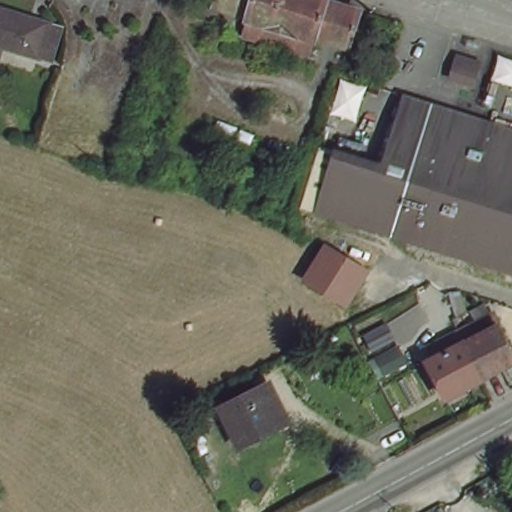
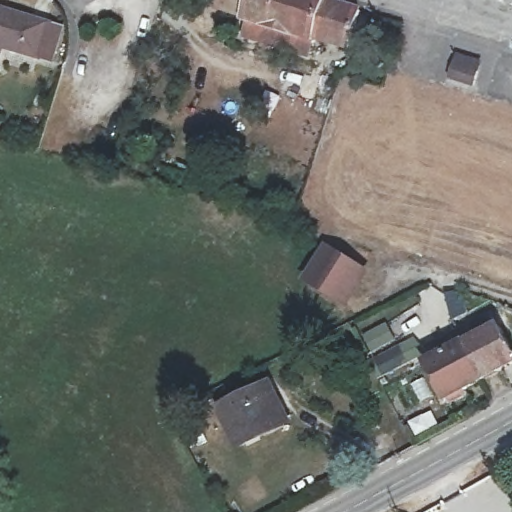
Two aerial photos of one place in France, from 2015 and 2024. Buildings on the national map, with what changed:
unchanged [(354,9),(344,40),(318,33),(315,36),(250,17),(250,11),(212,0),(328,0),(354,9)]
unchanged [(7,44),(1,60),(0,60),(0,6),(65,28),(53,60),(7,44)]
unchanged [(474,61),(481,64),(476,80),(448,73),(453,56),(461,59),(464,49),(476,53),(474,61)]
demolished [(490,79),(496,51),(512,56),(512,85),(490,79)]
demolished [(358,118),(331,113),(341,74),(368,82),(358,118)]
demolished [(313,210),(333,150),(379,165),(405,92),(512,126),(512,271),(313,210)]
unchanged [(328,249),(362,270),(342,302),(306,277),(328,249)]
unchanged [(436,319),(419,329),(412,317),(429,307),(436,319)]
unchanged [(512,345),(512,362),(480,379),(442,399),(423,363),(464,340),(491,326),(488,321),(498,315),(501,322),(512,345)]
unchanged [(284,412),(241,434),(226,404),(268,383),(284,412)]

